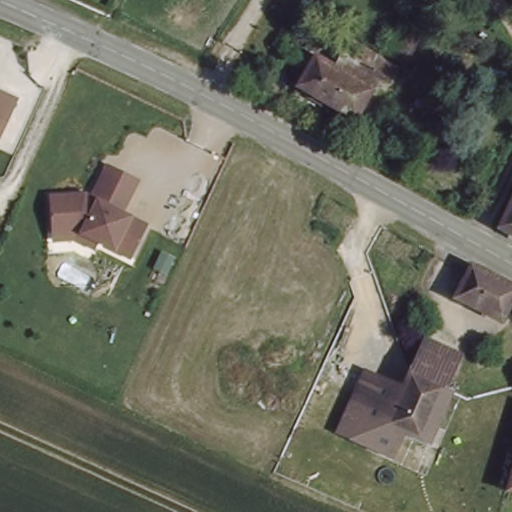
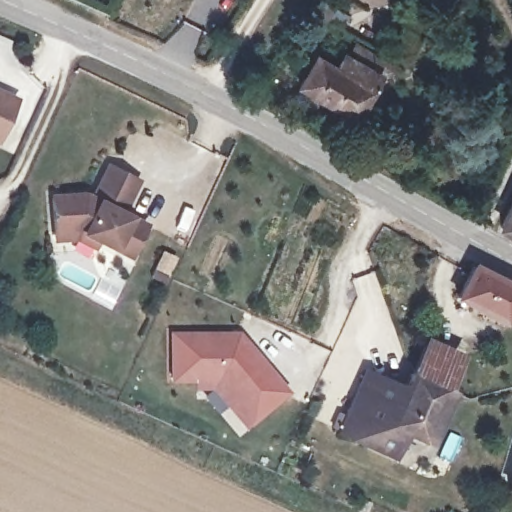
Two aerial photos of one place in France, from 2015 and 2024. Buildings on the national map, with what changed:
unchanged [(397,26),(403,15),(421,24),(402,61),(380,50),(393,24),(397,26)]
unchanged [(333,67),(342,54),(363,68),(370,57),(388,69),(382,79),(372,73),(348,120),(290,86),(310,54),(333,67)]
unchanged [(0,142),(0,88),(20,97),(0,142)]
unchanged [(125,212),(150,225),(133,256),(80,229),(58,231),(55,196),(88,193),(102,200),(105,194),(102,187),(112,165),(142,180),(125,212)]
demolished [(298,209),(312,177),(327,186),(313,217),(298,209)]
unchanged [(512,188),(512,237),(494,227),(512,188)]
unchanged [(460,303),(477,268),(512,287),(512,292),(495,322),(460,303)]
new [(170,378),(170,333),(228,333),(228,338),(236,342),(240,340),(282,392),(248,420),(242,425),(211,386),(193,386),(193,378),(170,378)]
unchanged [(420,343),(465,362),(453,387),(410,368),(420,343)]
unchanged [(387,423),(347,405),(365,367),(403,384),(387,423)]
unchanged [(408,433),(387,423),(403,384),(410,368),(453,387),(428,443),(408,433)]
unchanged [(395,460),(335,433),(347,405),(387,423),(408,433),(395,460)]
unchanged [(505,490),(512,466),(512,492),(505,490)]

